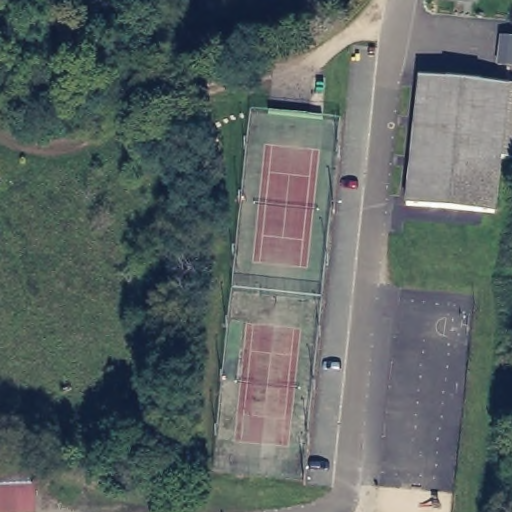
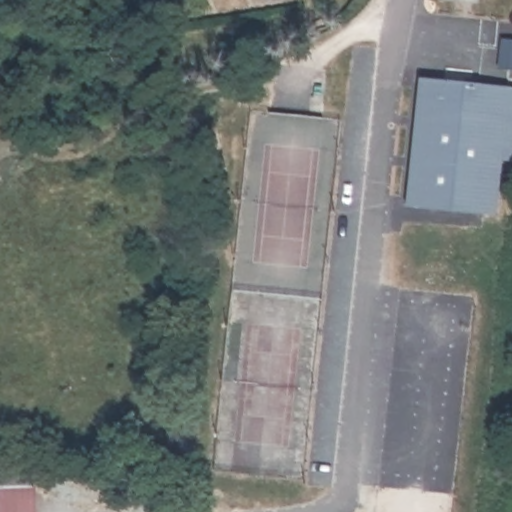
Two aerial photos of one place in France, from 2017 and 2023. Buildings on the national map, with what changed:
unchanged [(164,59),(175,58),(176,74),(166,74),(164,59)]
unchanged [(473,80),(463,153),(503,158),(498,209),(411,200),(425,75),(473,80)]
unchanged [(512,84),(503,158),(463,153),(473,80),(512,84)]
unchanged [(197,129),(215,125),(222,166),(205,169),(197,129)]
unchanged [(205,220),(216,221),(214,248),(203,246),(205,220)]
unchanged [(28,493),(28,512),(0,512),(0,493),(28,493)]

